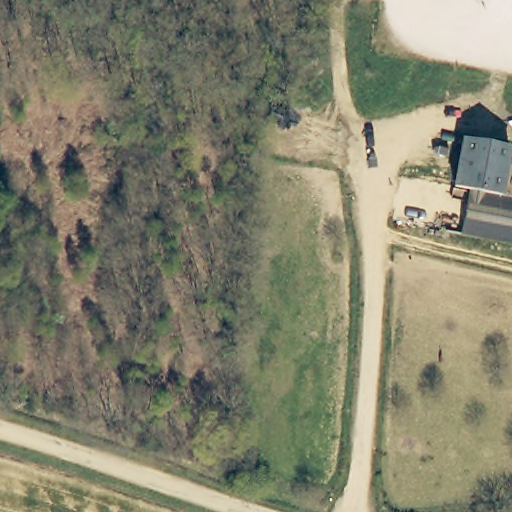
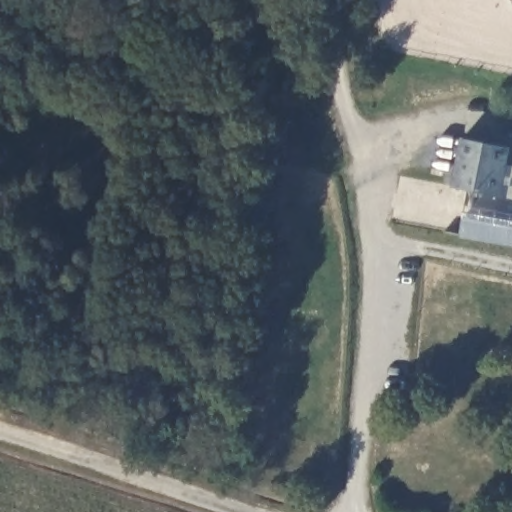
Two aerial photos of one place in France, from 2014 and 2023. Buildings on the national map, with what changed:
unchanged [(506,166),(512,167),(512,247),(460,238),(468,193),(454,190),(463,140),(509,149),(506,166)]

